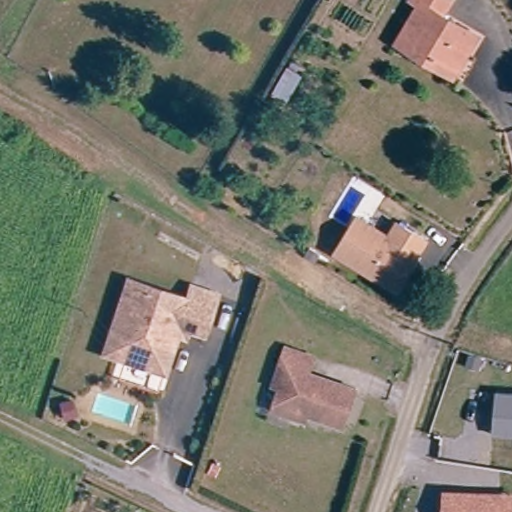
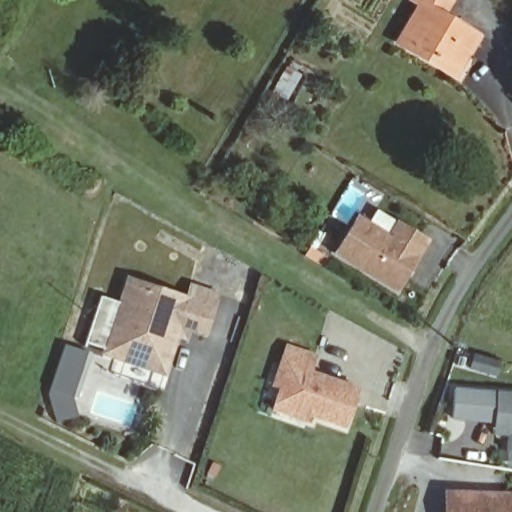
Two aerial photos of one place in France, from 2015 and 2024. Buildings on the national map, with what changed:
unchanged [(419,58),(400,48),(423,9),(414,4),(416,0),(448,0),(455,4),(447,20),(478,38),(469,56),(456,80),(419,58)]
unchanged [(399,294),(337,257),(360,220),(391,239),(400,225),(430,243),(399,294)]
unchanged [(114,374),(120,355),(101,348),(107,330),(125,275),(184,294),(188,281),(213,289),(209,302),(201,329),(176,320),(161,368),(155,387),(114,374)]
new [(74,420),(52,419),(54,359),(60,359),(61,347),(85,352),(75,395),(74,420)]
unchanged [(270,410),(273,403),(278,387),(271,385),(278,364),(283,348),(312,357),(307,372),(355,388),(342,426),(307,414),(305,421),(270,410)]
unchanged [(496,392),(512,393),(512,437),(493,435),(496,392)]
unchanged [(512,492),(512,512),(442,512),(443,489),(512,492)]

